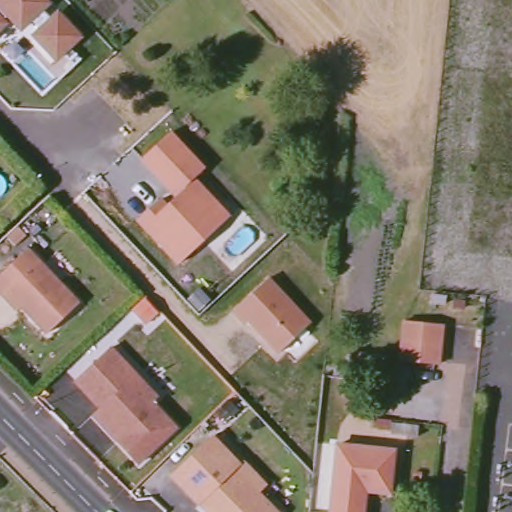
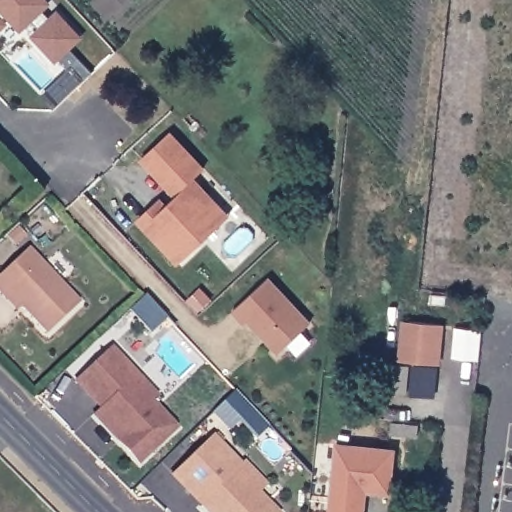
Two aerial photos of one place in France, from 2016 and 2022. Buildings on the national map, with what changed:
unchanged [(42,31),(32,21),(22,30),(9,16),(3,22),(6,25),(0,31),(0,0),(44,0),(48,4),(42,10),(52,21),(58,15),(80,38),(57,60),(35,37),(42,31)]
unchanged [(226,226),(185,265),(144,221),(166,200),(172,207),(186,193),(180,187),(177,190),(147,160),(175,133),(210,170),(199,180),(218,200),(235,218),(226,226)]
unchanged [(0,295),(0,278),(28,252),(79,307),(47,337),(22,309),(17,314),(2,298),(0,295)]
unchanged [(317,325),(285,354),(255,321),(251,325),(239,312),(275,279),(317,325)]
unchanged [(151,300),(163,313),(153,324),(140,310),(151,300)]
unchanged [(445,325),(442,363),(398,360),(402,319),(445,325)]
unchanged [(101,410),(75,383),(110,351),(136,379),(156,401),(150,406),(175,432),(140,466),(117,443),(94,417),(97,414),(101,410)]
unchanged [(213,438),(240,468),(245,464),(265,486),(255,495),(271,512),(208,512),(200,503),(200,504),(173,474),(195,455),(213,438)]
unchanged [(395,448),(390,492),(369,491),(366,512),(327,512),(335,440),(395,448)]

